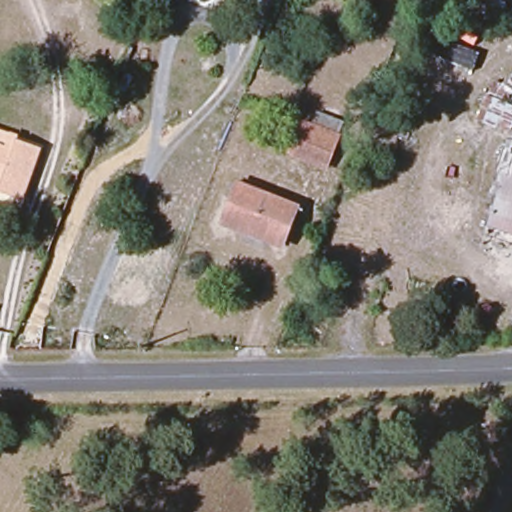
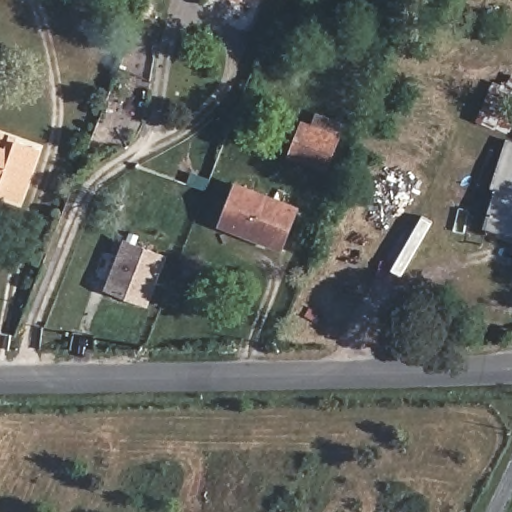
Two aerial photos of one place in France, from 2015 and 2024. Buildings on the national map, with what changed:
unchanged [(511,132),(474,124),(491,83),(507,84),(512,77),(512,131),(511,132)]
unchanged [(315,111),(347,122),(341,143),(307,129),(315,111)]
unchanged [(11,129),(39,139),(20,194),(0,188),(0,142),(6,144),(11,129)]
unchanged [(334,142),(322,173),(292,161),(303,129),(334,142)]
unchanged [(489,225),(498,187),(493,186),(504,143),(512,145),(512,232),(489,225)]
unchanged [(294,212),(278,251),(218,227),(234,188),(294,212)]
new [(148,306),(106,289),(125,238),(168,254),(148,306)]

